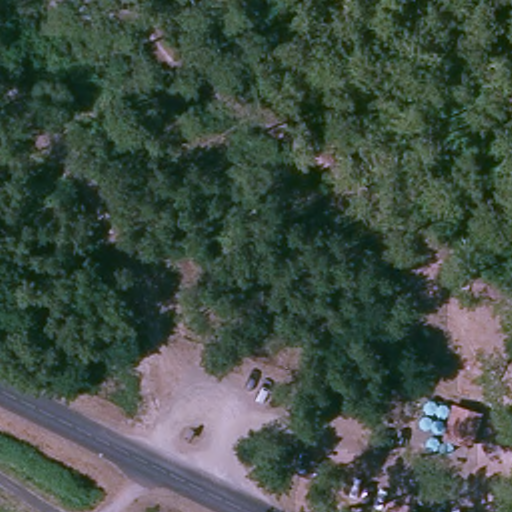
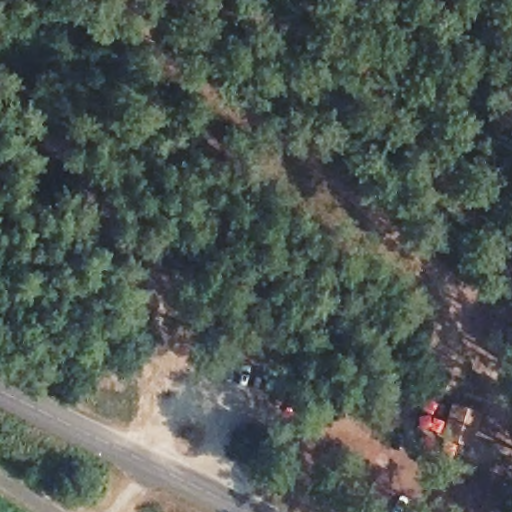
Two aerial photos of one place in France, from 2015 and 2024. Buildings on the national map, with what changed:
unchanged [(485,412),(473,447),(443,439),(454,405),(485,412)]

